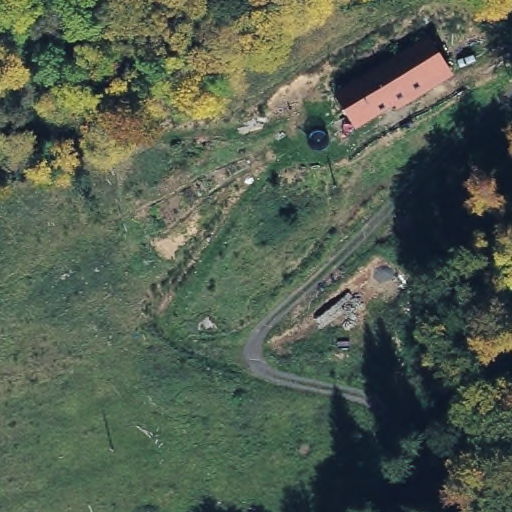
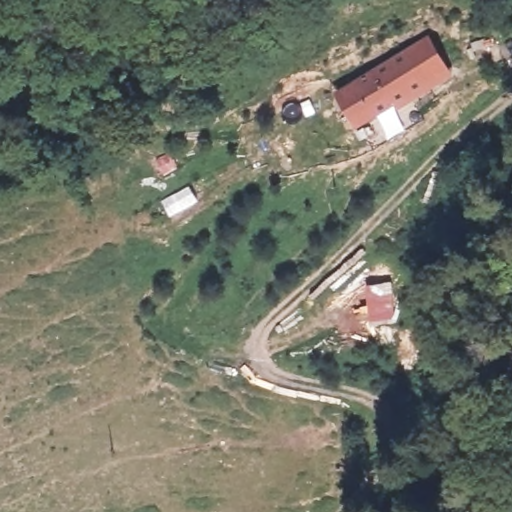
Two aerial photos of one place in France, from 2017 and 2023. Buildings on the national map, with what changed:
unchanged [(427,27),(455,65),(357,136),(330,90),(427,27)]

